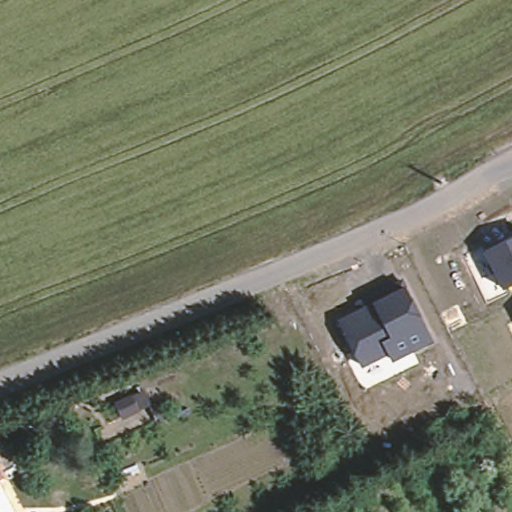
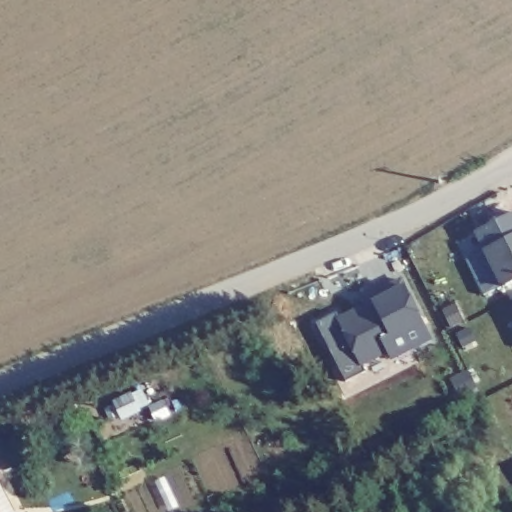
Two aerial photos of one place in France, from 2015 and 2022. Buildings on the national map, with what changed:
unchanged [(483,252),(512,238),(512,285),(502,290),(483,252)]
unchanged [(405,290),(431,340),(393,358),(391,353),(361,367),(341,321),(405,290)]
unchanged [(0,478),(0,461),(6,476),(0,478)]

